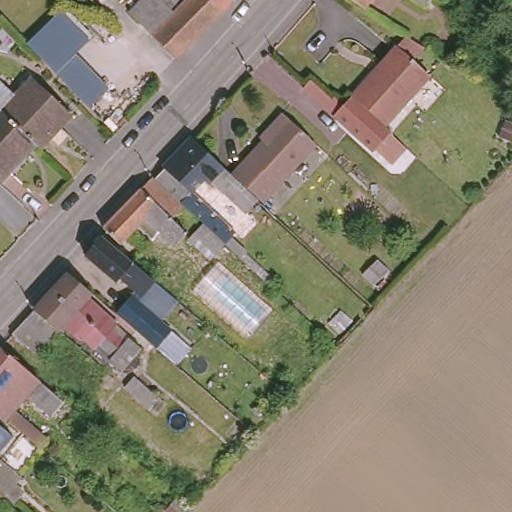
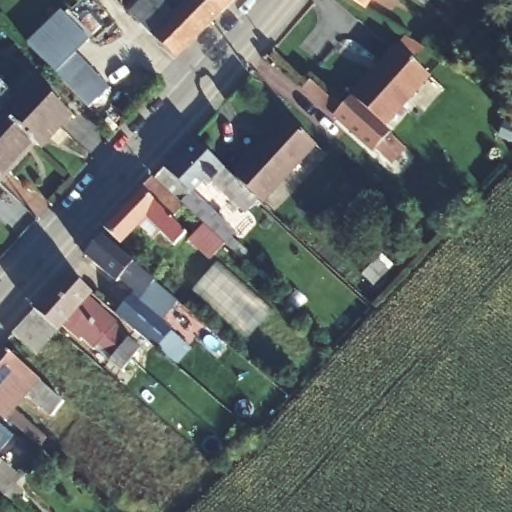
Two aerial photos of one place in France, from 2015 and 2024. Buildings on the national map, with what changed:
unchanged [(127,10),(137,0),(162,0),(172,11),(183,0),(228,0),(194,35),(172,56),(150,33),(127,10)]
unchanged [(350,4),(345,0),(368,0),(361,11),(350,4)]
unchanged [(412,0),(428,0),(423,7),(412,0)]
unchanged [(92,35),(78,50),(112,84),(93,104),(30,38),(63,5),(92,35)]
unchanged [(410,31),(432,45),(422,55),(436,68),(387,119),(372,104),(356,90),(403,39),(410,31)]
unchanged [(412,141),(397,157),(384,145),(381,148),(307,83),(315,75),(335,94),(340,90),(349,99),(356,90),(372,104),(369,108),(384,123),(387,119),(412,141)]
unchanged [(0,112),(0,91),(2,89),(19,104),(40,84),(75,116),(41,153),(37,149),(6,119),(0,112)]
unchanged [(225,166),(265,125),(261,121),(274,109),(309,139),(255,196),(247,188),(225,166)]
unchanged [(29,160),(2,189),(0,187),(0,125),(6,119),(37,149),(30,158),(29,160)]
unchanged [(162,164),(160,162),(188,133),(225,166),(247,188),(236,198),(203,167),(196,173),(192,170),(180,183),(224,224),(214,234),(174,198),(151,176),(162,164)]
unchanged [(174,198),(160,212),(177,226),(167,237),(137,210),(113,235),(99,224),(145,171),(151,176),(174,198)]
unchanged [(174,296),(166,305),(142,284),(135,291),(114,272),(110,275),(81,250),(98,231),(174,296)]
unchanged [(153,252),(145,260),(140,255),(147,247),(153,252)]
unchanged [(47,286),(63,268),(87,289),(83,294),(110,317),(108,321),(112,324),(104,335),(47,286)]
unchanged [(104,335),(100,340),(95,337),(90,340),(80,332),(75,337),(60,323),(56,327),(30,305),(47,286),(104,335)]
unchanged [(196,352),(182,367),(113,307),(127,291),(196,352)]
unchanged [(34,351),(10,328),(30,305),(56,327),(34,351)]
unchanged [(105,355),(115,344),(124,334),(132,342),(123,352),(113,362),(105,355)]
unchanged [(57,394),(41,412),(18,391),(6,405),(38,434),(35,439),(20,426),(1,410),(0,411),(0,345),(57,394)]
unchanged [(0,433),(0,424),(5,428),(0,433)]

